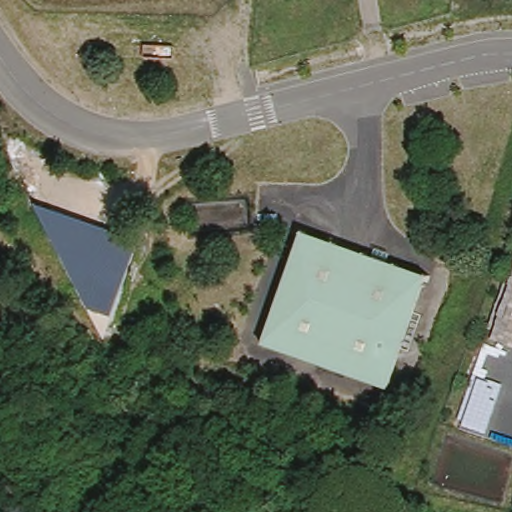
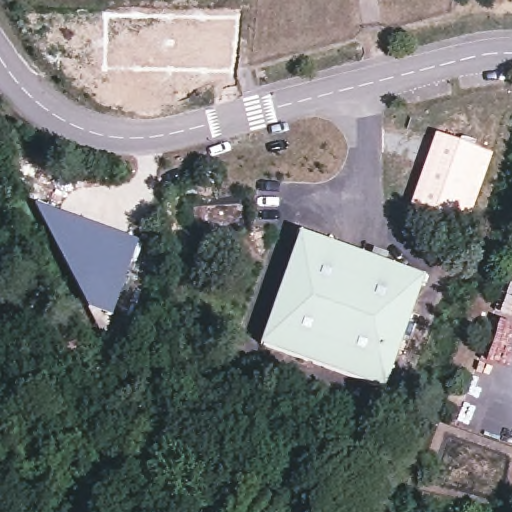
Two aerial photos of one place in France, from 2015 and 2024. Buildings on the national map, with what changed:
new [(434,132),(469,142),(493,152),(466,224),(409,205),(434,132)]
unchanged [(139,243),(113,317),(89,308),(35,206),(139,243)]
unchanged [(427,273),(387,385),(262,340),(299,230),(427,273)]

